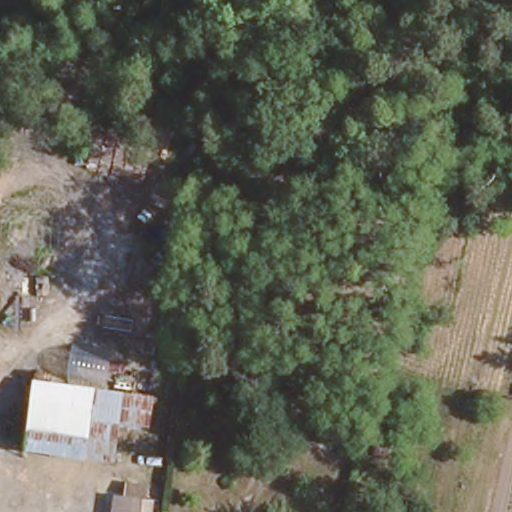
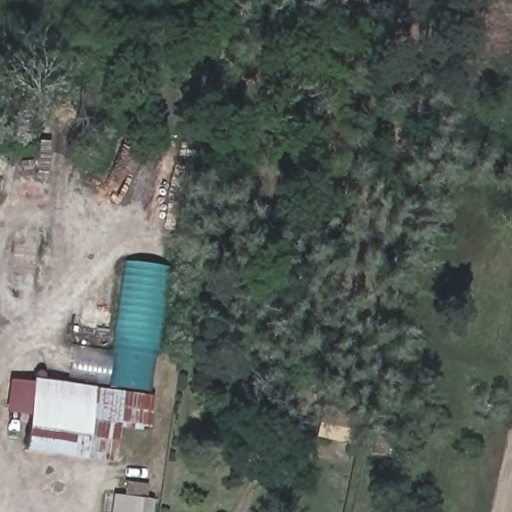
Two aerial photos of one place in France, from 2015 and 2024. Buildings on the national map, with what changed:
new [(73,346),(108,351),(123,260),(166,267),(148,391),(68,378),(73,346)]
unchanged [(8,440),(19,377),(135,394),(127,457),(8,440)]
unchanged [(376,447),(379,432),(409,437),(404,452),(376,447)]
unchanged [(139,499),(136,512),(121,512),(123,497),(139,499)]

